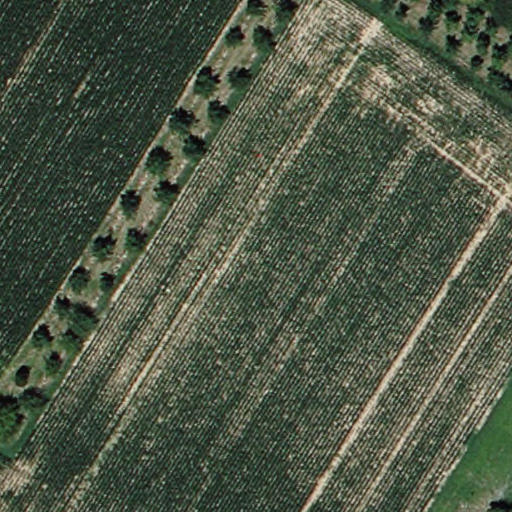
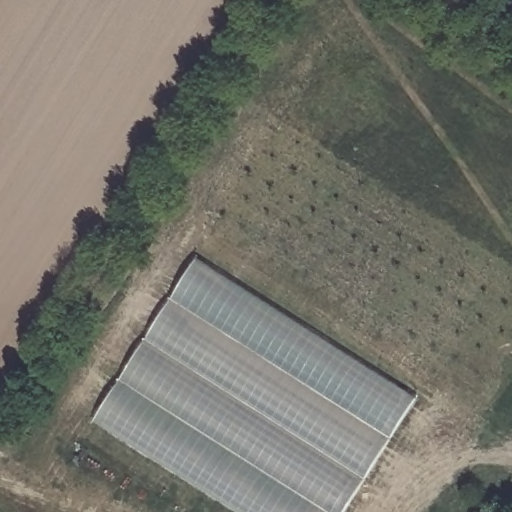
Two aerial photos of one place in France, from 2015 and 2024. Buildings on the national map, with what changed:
new [(236,512),(93,421),(199,258),(418,396),(344,512),(236,512)]

